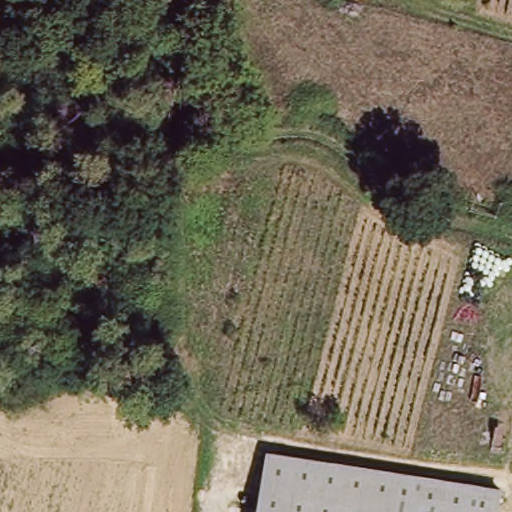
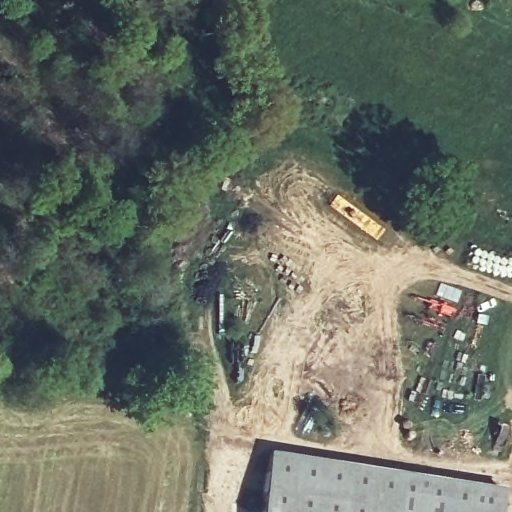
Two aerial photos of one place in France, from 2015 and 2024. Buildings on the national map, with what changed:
unchanged [(500,488),(497,512),(259,512),(265,460),(500,488)]

